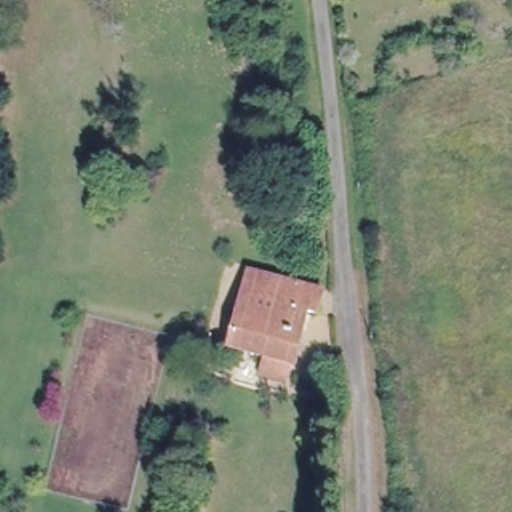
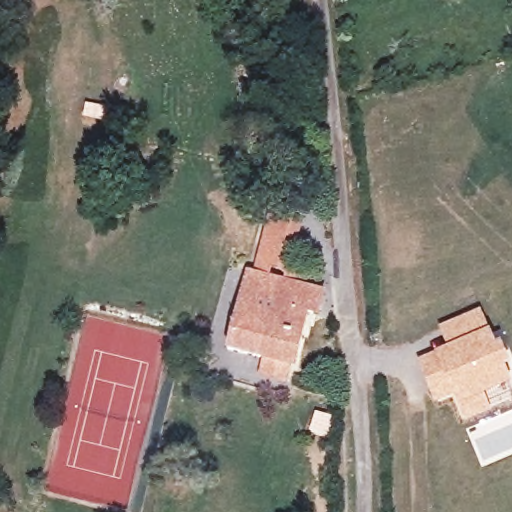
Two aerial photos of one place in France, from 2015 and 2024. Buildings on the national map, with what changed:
unchanged [(501,35),(503,43),(482,50),(479,42),(501,35)]
unchanged [(320,307),(307,303),(289,374),(264,367),(268,352),(231,343),(250,268),(325,287),(320,307)]
new [(490,330),(497,345),(502,342),(511,366),(507,368),(512,382),(512,383),(483,395),(490,413),(466,422),(452,393),(436,400),(417,359),(435,350),(447,346),(438,328),(481,311),(490,330)]

